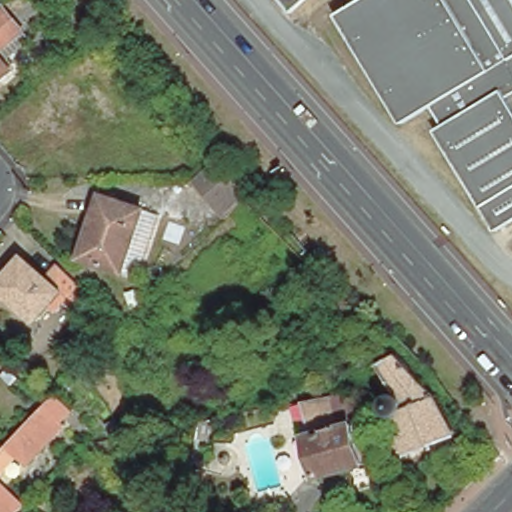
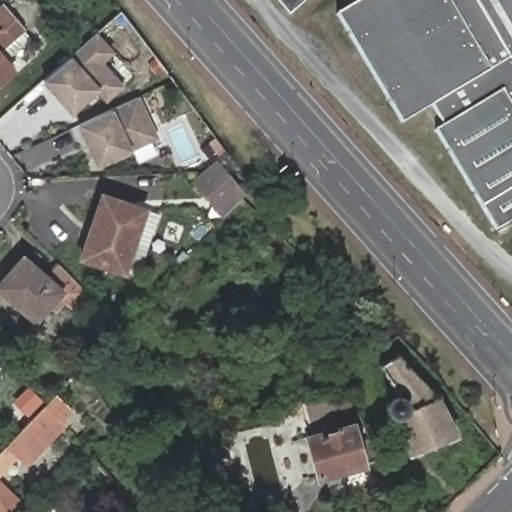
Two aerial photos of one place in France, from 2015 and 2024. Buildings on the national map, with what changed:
unchanged [(289,11),(279,0),(301,0),(289,11)]
unchanged [(512,184),(479,204),(433,126),(441,121),(429,102),(399,119),(333,11),(352,0),(512,0),(512,91),(505,95),(512,106),(512,184)]
unchanged [(6,7),(25,30),(0,53),(0,13),(6,7)]
new [(96,93),(70,115),(42,82),(72,56),(97,32),(116,53),(104,63),(125,86),(106,101),(96,93)]
unchanged [(16,71),(0,85),(0,53),(16,71)]
new [(133,151),(96,168),(76,125),(113,109),(140,96),(158,137),(133,151)]
unchanged [(221,211),(215,204),(194,179),(215,161),(236,186),(242,194),(221,211)]
unchanged [(512,223),(497,231),(479,204),(512,184),(512,223)]
unchanged [(129,271),(117,266),(76,252),(97,191),(139,205),(150,210),(129,271)]
unchanged [(0,295),(0,281),(21,259),(42,280),(56,267),(85,297),(70,312),(55,298),(29,325),(0,295)]
unchanged [(354,325),(315,290),(321,283),(360,319),(354,325)]
unchanged [(390,410),(395,406),(394,406),(393,406),(393,405),(392,405),(391,405),(391,404),(390,403),(390,402),(389,401),(389,400),(389,399),(389,398),(389,397),(389,396),(389,395),(390,395),(390,394),(390,393),(391,393),(391,392),(392,392),(393,391),(394,391),(395,390),(396,390),(397,390),(398,390),(399,390),(386,358),(407,350),(442,386),(461,426),(419,447),(410,452),(390,410)]
unchanged [(2,381),(10,373),(38,402),(14,428),(0,414),(0,393),(5,399),(13,391),(2,381)]
unchanged [(334,395),(342,427),(351,425),(363,463),(317,476),(306,436),(309,435),(301,401),(334,395)]
unchanged [(7,447),(15,438),(20,433),(34,419),(47,405),(56,396),(73,411),(61,424),(64,427),(27,466),(20,458),(0,480),(0,454),(7,447)]
unchanged [(124,437),(111,440),(104,426),(115,420),(124,437)]
unchanged [(210,420),(208,442),(196,443),(197,422),(210,420)]
unchanged [(23,507),(18,512),(0,512),(0,484),(23,507)]
unchanged [(138,512),(129,512),(133,507),(138,512)]
unchanged [(150,512),(141,512),(145,507),(150,512)]

